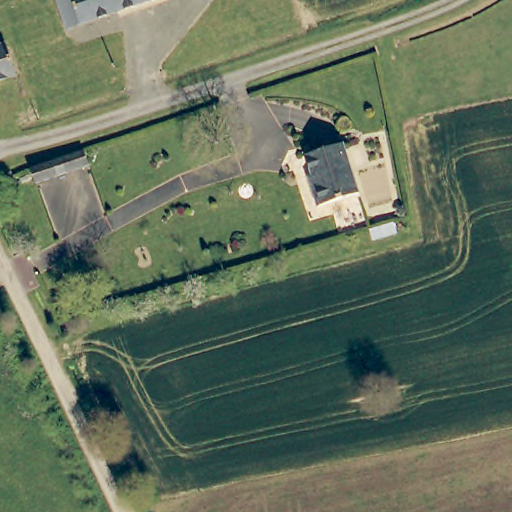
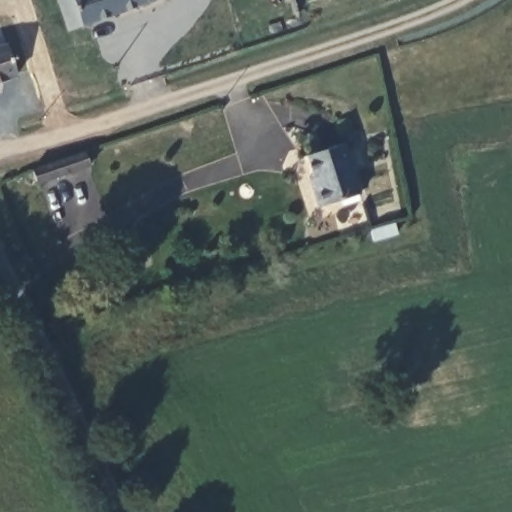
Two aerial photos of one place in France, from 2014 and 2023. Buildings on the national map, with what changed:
unchanged [(113,16),(65,34),(53,0),(107,0),(113,16)]
unchanged [(149,2),(113,16),(107,0),(148,0),(149,2)]
unchanged [(2,48),(14,79),(0,84),(0,49),(2,48)]
unchanged [(353,194),(313,208),(307,190),(312,189),(302,161),(337,149),(353,194)]
unchanged [(88,164),(35,181),(30,168),(82,150),(88,164)]

